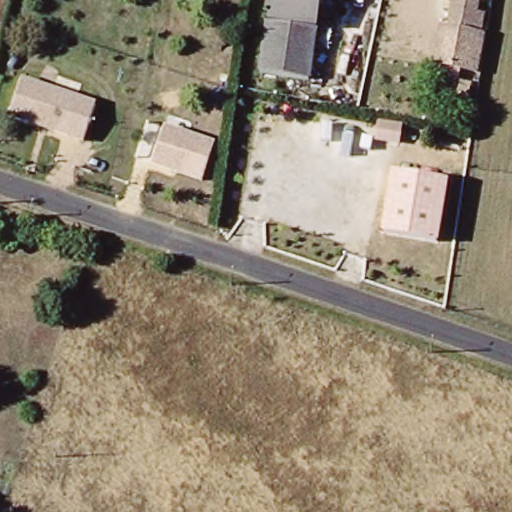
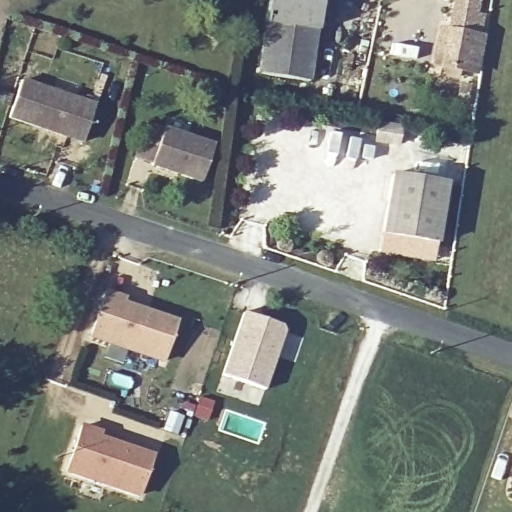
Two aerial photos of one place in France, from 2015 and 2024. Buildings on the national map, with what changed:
unchanged [(268,0),(321,0),(317,33),(312,81),(260,73),(265,25),(268,0)]
unchanged [(443,65),(453,0),(482,0),(472,69),(462,68),(443,65)]
unchanged [(9,121),(23,79),(96,103),(82,146),(9,121)]
unchanged [(215,141),(202,182),(151,165),(165,125),(215,141)]
unchanged [(381,234),(391,172),(447,181),(438,244),(381,234)]
new [(378,254),(381,234),(438,244),(435,262),(378,254)]
new [(121,297),(120,302),(145,310),(174,320),(160,360),(89,335),(104,290),(121,297)]
new [(287,330),(266,389),(223,376),(244,311),(285,324),(287,330)]
new [(95,431),(94,436),(119,444),(147,454),(134,494),(62,470),(77,425),(95,431)]

